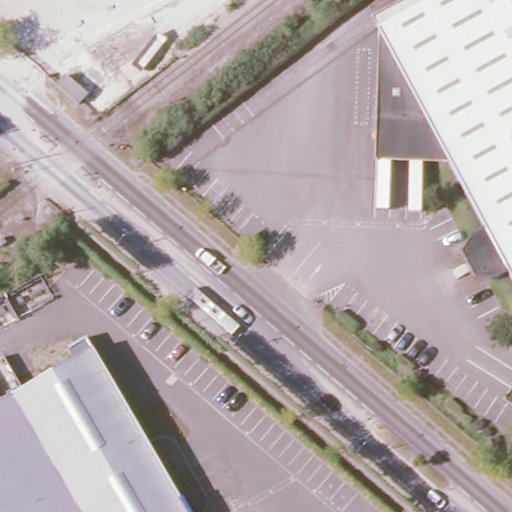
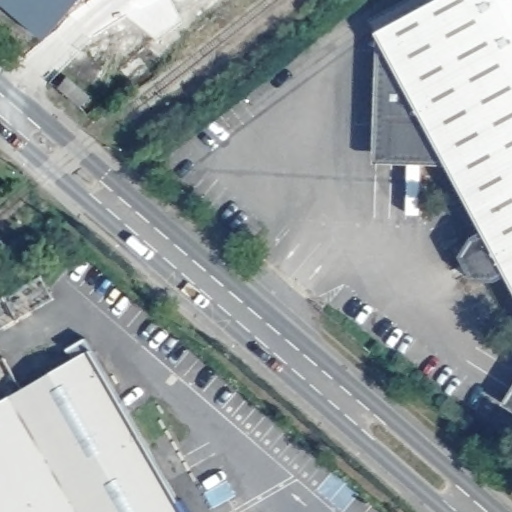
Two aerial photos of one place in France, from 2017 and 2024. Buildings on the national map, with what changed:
new [(39,34),(0,1),(0,0),(68,0),(39,34)]
unchanged [(498,282),(477,281),(465,258),(472,236),(483,230),(447,160),(378,161),(380,30),(438,0),(512,0),(512,283),(509,276),(498,282)]
unchanged [(85,95),(79,103),(56,84),(62,76),(85,95)]
demolished [(7,155),(13,164),(6,169),(0,173),(0,160),(7,155)]
unchanged [(74,355),(70,345),(84,335),(187,512),(0,512),(0,398),(74,355)]
unchanged [(512,390),(512,407),(505,403),(512,390)]

